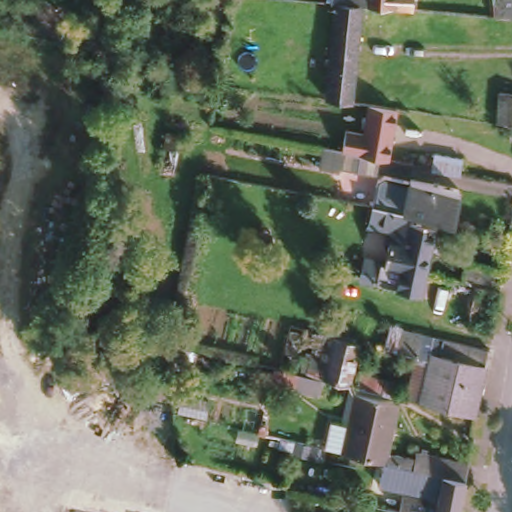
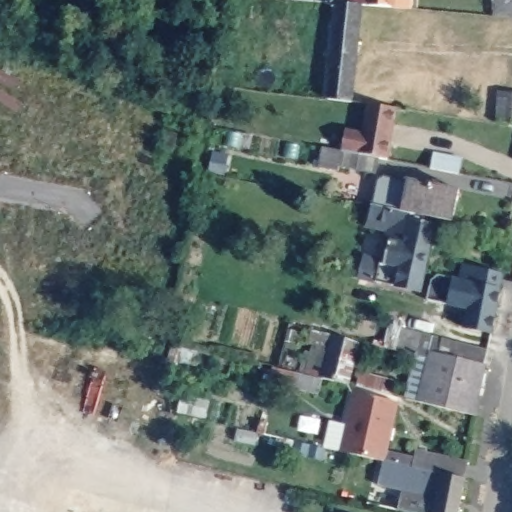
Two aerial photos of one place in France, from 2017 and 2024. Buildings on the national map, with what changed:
new [(352,3),(334,2),(334,4),(330,3),(330,0),(352,0),(352,3)]
unchanged [(352,0),(393,0),(393,6),(360,4),(352,3),(352,0)]
unchanged [(492,14),(491,0),(512,0),(512,15),(505,15),(492,14)]
unchanged [(367,104),(352,102),(324,98),(334,2),(352,3),(360,4),(355,83),(353,89),(370,91),(367,104)]
unchanged [(512,90),(512,120),(487,117),(488,87),(512,90)]
unchanged [(386,160),(383,160),(342,151),(345,131),(364,135),(370,104),(395,107),(386,160)]
unchanged [(402,142),(423,147),(419,162),(397,157),(402,142)]
unchanged [(382,174),(339,166),(338,171),(317,168),(322,146),(342,151),(383,160),(382,174)]
unchanged [(433,154),(460,158),(458,174),(431,169),(433,154)]
unchanged [(410,178),(458,189),(452,221),(433,217),(402,211),(410,178)]
unchanged [(360,277),(364,257),(378,259),(378,262),(383,262),(388,241),(383,239),(385,230),(365,227),(367,221),(370,204),(402,211),(433,217),(432,223),(434,223),(431,242),(435,242),(437,244),(435,252),(433,254),(426,252),(422,272),(423,273),(420,292),(390,285),(392,281),(375,277),(375,281),(360,277)]
demolished [(470,323),(478,278),(465,276),(468,259),(507,267),(504,284),(495,329),(470,323)]
new [(465,326),(469,307),(427,297),(432,278),(438,271),(461,276),(465,261),(502,270),(491,332),(465,326)]
unchanged [(306,342),(308,328),(329,333),(357,343),(347,384),(320,378),(329,348),(306,342)]
unchanged [(395,350),(400,328),(441,338),(487,349),(483,364),(472,415),(419,402),(405,398),(415,355),(395,350)]
unchanged [(269,383),(272,367),(320,378),(317,393),(269,383)]
unchanged [(360,372),(394,381),(392,395),(357,387),(360,372)]
unchanged [(355,393),(396,401),(385,457),(385,461),(342,452),(355,393)]
unchanged [(466,464),(463,479),(410,467),(385,461),(385,457),(388,457),(392,455),(412,460),(414,452),(466,464)]
unchanged [(407,490),(380,484),(385,461),(410,467),(463,479),(458,512),(433,512),(435,496),(407,490)]
unchanged [(410,500),(408,512),(406,512),(396,510),(398,498),(410,500)]

